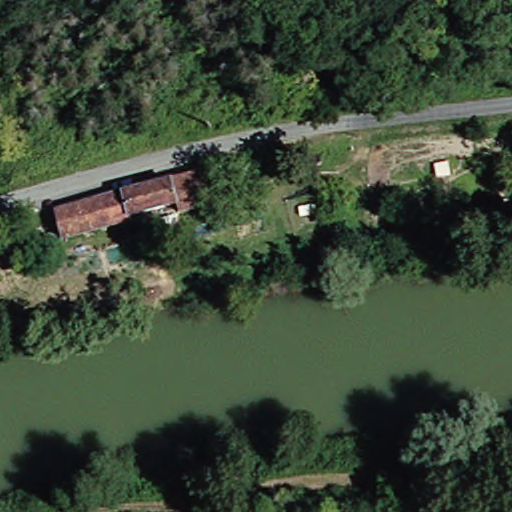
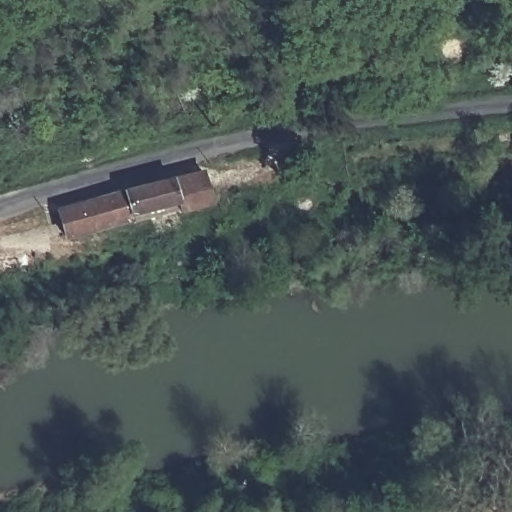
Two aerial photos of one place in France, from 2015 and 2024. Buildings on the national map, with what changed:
unchanged [(199,172),(207,206),(182,212),(180,203),(136,214),(138,223),(127,226),(126,219),(59,236),(52,209),(199,172)]

